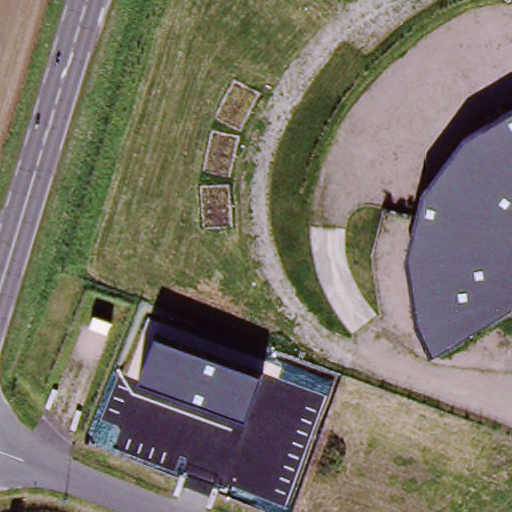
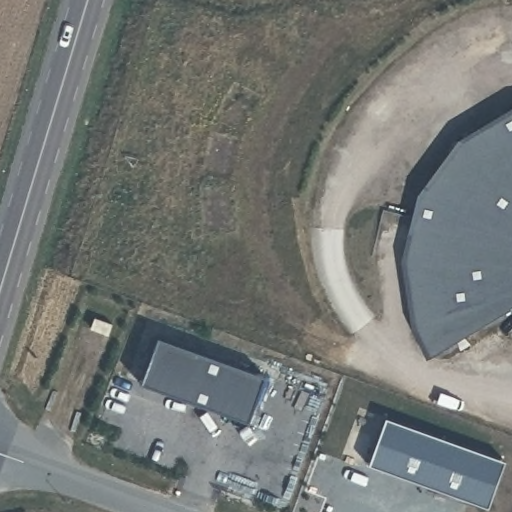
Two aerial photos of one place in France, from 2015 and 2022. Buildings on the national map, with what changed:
unchanged [(429,357),(412,327),(400,251),(417,193),(460,136),(512,105),(512,312),(509,308),(429,357)]
unchanged [(262,375),(246,420),(138,380),(159,336),(262,375)]
new [(367,462),(383,415),(502,459),(487,505),(367,462)]

